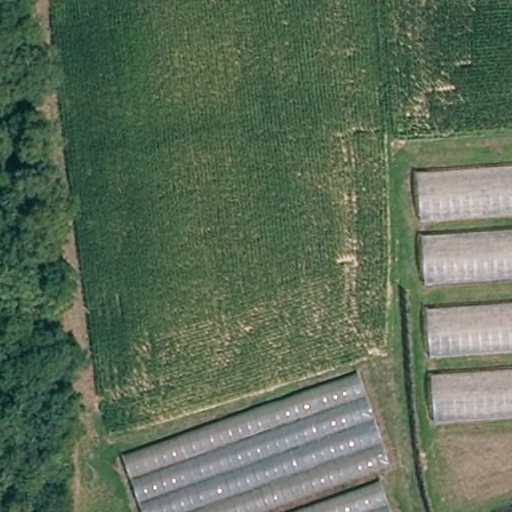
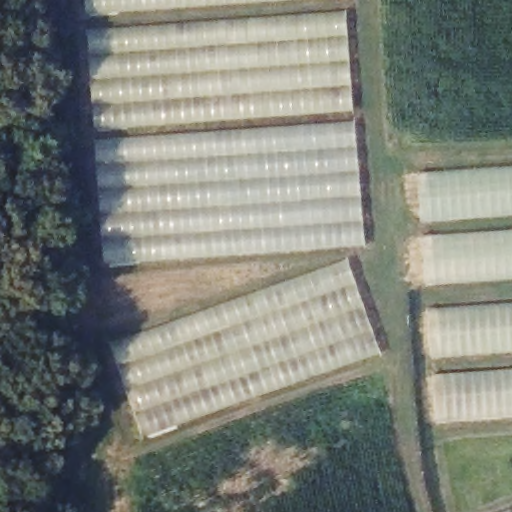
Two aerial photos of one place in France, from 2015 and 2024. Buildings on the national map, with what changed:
new [(86,13),(84,0),(270,0),(86,13)]
new [(346,11),(353,109),(94,130),(86,30),(346,11)]
new [(355,122),(365,244),(104,263),(95,141),(355,122)]
unchanged [(417,178),(512,171),(512,219),(421,226),(417,178)]
unchanged [(422,241),(512,235),(512,283),(425,289),(422,241)]
new [(348,257),(381,353),(142,438),(109,340),(348,257)]
unchanged [(427,310),(512,304),(512,352),(430,357),(427,310)]
unchanged [(436,375),(512,370),(512,418),(440,423),(436,375)]
unchanged [(390,512),(292,512),(380,480),(390,512)]

